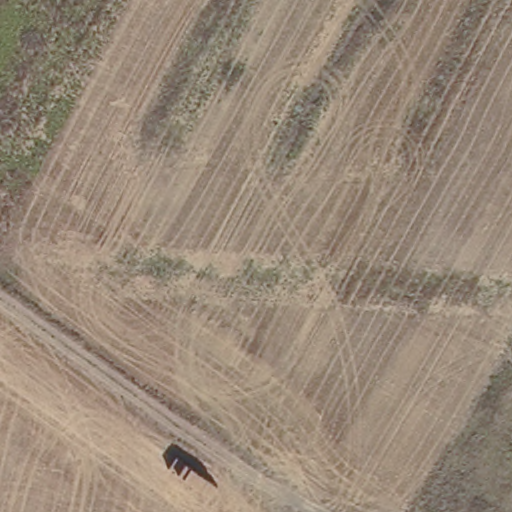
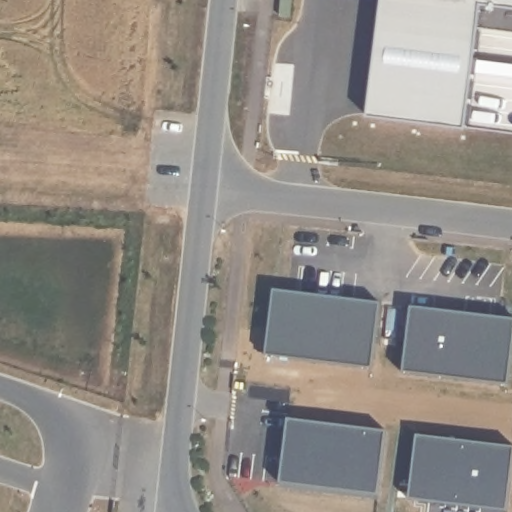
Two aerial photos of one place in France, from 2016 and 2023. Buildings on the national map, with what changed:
new [(278,15),(280,0),(290,0),(289,16),(278,15)]
new [(474,20),(418,122),(365,116),(378,0),(500,0),(491,22),(474,20)]
new [(491,22),(500,0),(512,0),(512,24),(491,22)]
new [(464,128),(418,122),(474,20),(464,128)]
new [(290,360),(264,357),(272,290),(324,297),(290,360)]
new [(371,370),(290,360),(324,297),(379,303),(371,370)]
new [(482,383),(401,373),(409,307),(512,320),(512,352),(508,387),(482,383)]
new [(279,480),(286,420),(386,432),(378,497),(291,486),(278,485),(279,480)]
new [(418,502),(407,501),(415,436),(452,441),(418,502)]
new [(507,512),(503,512),(418,502),(452,441),(512,448),(512,468),(507,512)]

